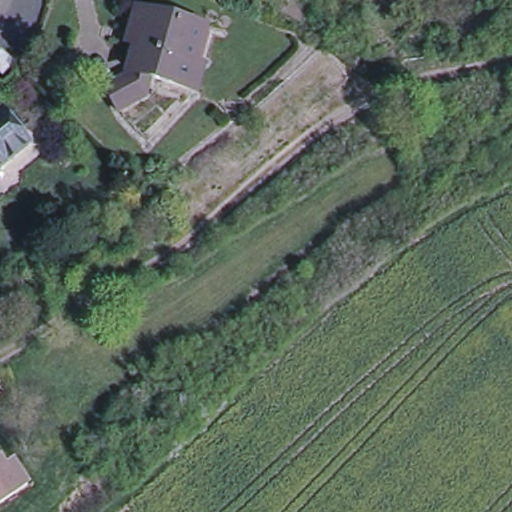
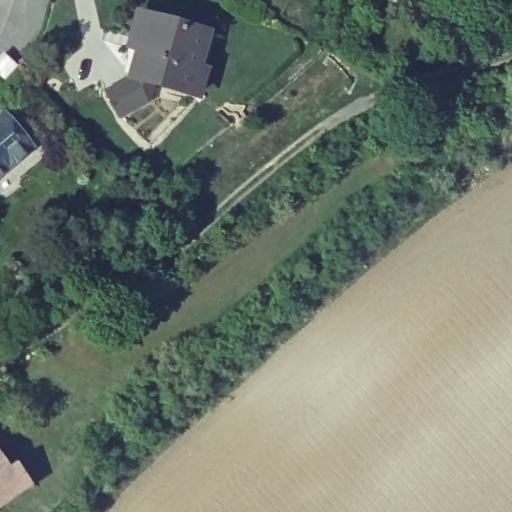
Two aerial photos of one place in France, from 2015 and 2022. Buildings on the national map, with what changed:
unchanged [(138,34),(146,11),(210,34),(197,68),(207,71),(198,94),(160,80),(153,96),(126,114),(113,89),(140,72),(152,39),(138,34)]
unchanged [(18,70),(6,82),(0,76),(0,63),(5,57),(18,70)]
unchanged [(1,116),(29,152),(0,176),(0,117),(1,116)]
unchanged [(7,468),(15,463),(28,485),(0,504),(0,458),(7,468)]

